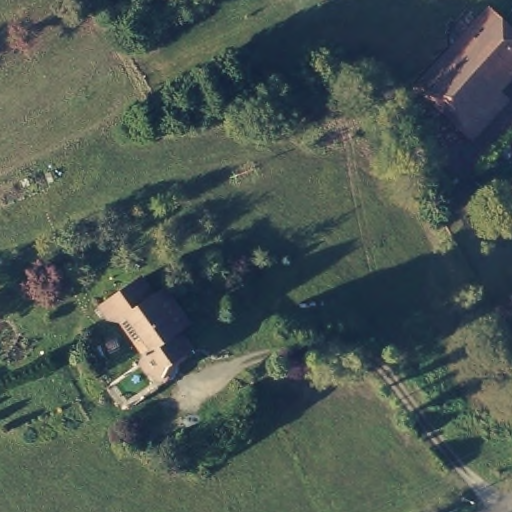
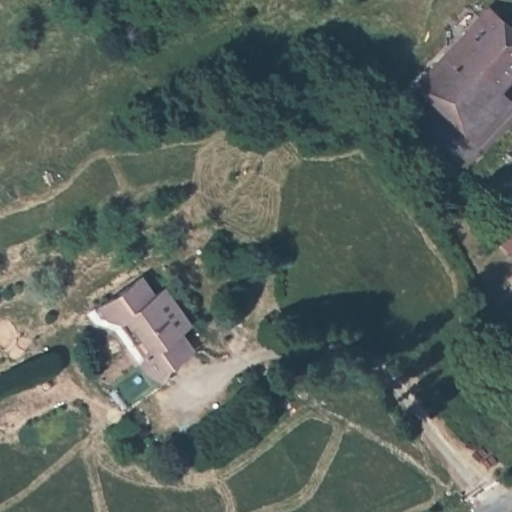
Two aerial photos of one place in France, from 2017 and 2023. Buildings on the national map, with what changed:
unchanged [(472,140),(462,130),(418,88),(491,11),(512,31),(512,78),(475,116),(483,125),(485,126),(472,140)]
unchanged [(172,358),(163,364),(158,380),(143,372),(137,363),(138,353),(115,320),(95,317),(89,309),(136,276),(149,294),(159,287),(184,322),(174,330),(183,343),(187,347),(172,358)]
unchanged [(512,336),(512,338),(511,337),(512,336)]
unchanged [(155,386),(125,408),(107,383),(136,362),(137,363),(143,372),(158,380),(162,383),(155,386)]

